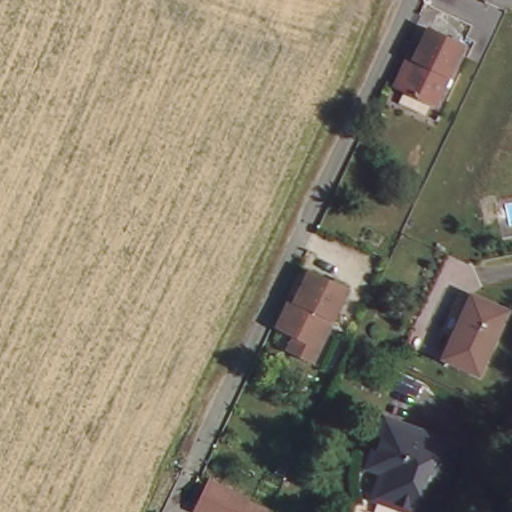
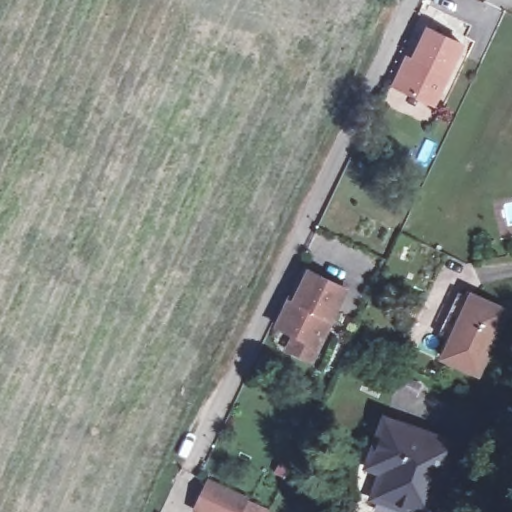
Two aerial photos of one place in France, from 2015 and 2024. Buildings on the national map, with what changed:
unchanged [(405,61),(412,64),(427,30),(461,46),(436,107),(401,91),(394,88),(405,61)]
unchanged [(288,350),(295,337),(277,329),(291,299),(296,301),(310,272),(348,290),(334,320),(320,349),(314,362),(288,350)]
unchanged [(440,360),(470,299),(505,315),(476,377),(440,360)]
unchanged [(381,467),(367,462),(383,420),(448,443),(420,512),(370,494),(381,467)]
unchanged [(250,500),(270,510),(269,512),(200,512),(213,483),(250,500)]

